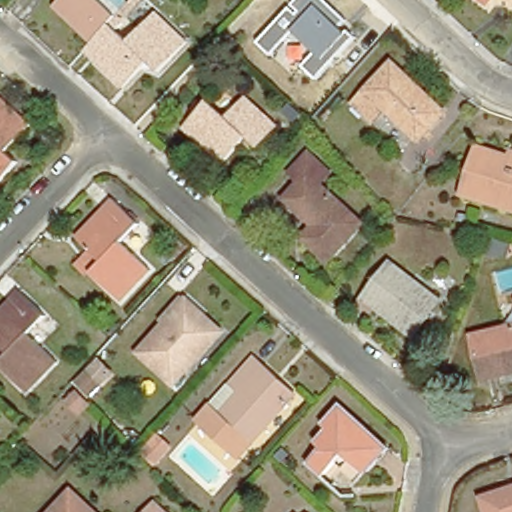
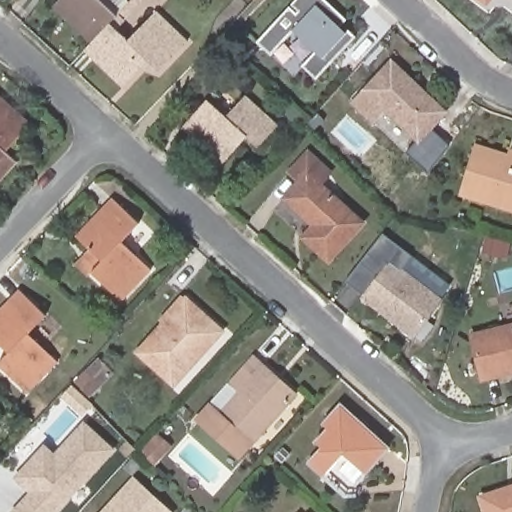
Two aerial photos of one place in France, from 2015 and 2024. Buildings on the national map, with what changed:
unchanged [(57,0),(102,0),(117,13),(110,21),(91,40),(53,4),(57,0)]
unchanged [(345,35),(349,31),(357,40),(319,79),(303,66),(313,51),(294,33),(272,55),(262,40),(290,8),(295,11),(298,9),(292,4),(296,0),(325,0),(347,20),(338,28),(345,35)]
unchanged [(487,0),(489,0),(488,1),(487,0)]
unchanged [(129,38),(155,10),(187,39),(160,69),(149,59),(123,85),(84,49),(91,40),(110,21),(129,38)]
unchanged [(392,61),(445,111),(420,137),(385,106),(373,118),(355,100),(392,61)]
unchanged [(213,94),(231,110),(251,89),(282,118),(263,140),(252,130),(228,157),(188,120),(213,94)]
unchanged [(6,144),(18,155),(0,175),(0,91),(30,118),(6,144)]
unchanged [(312,145),(336,166),(326,177),(369,216),(333,254),(308,231),(319,219),(290,191),(305,175),(294,164),(312,145)]
unchanged [(456,192),(470,145),(501,155),(502,150),(512,153),(512,210),(456,192)]
unchanged [(73,258),(88,242),(76,230),(111,191),(138,216),(121,235),(149,262),(120,293),(91,266),(86,270),(73,258)]
new [(383,234),(412,256),(402,270),(390,261),(364,294),(348,281),(383,234)]
unchanged [(183,247),(177,255),(168,247),(175,239),(183,247)]
unchanged [(364,294),(390,261),(402,270),(441,298),(414,333),(376,305),(372,310),(359,300),(364,294)]
unchanged [(28,332),(56,359),(26,391),(0,365),(0,359),(8,351),(0,344),(0,308),(18,289),(44,314),(28,332)]
unchanged [(220,329),(173,382),(136,350),(151,334),(163,321),(186,297),(220,329)]
unchanged [(483,377),(472,334),(512,325),(512,371),(483,377)]
unchanged [(253,355),(293,392),(236,456),(196,418),(253,355)]
unchanged [(86,370),(99,382),(91,391),(78,378),(86,370)]
unchanged [(74,393),(85,403),(76,412),(66,401),(74,393)]
unchanged [(350,402),(396,443),(375,467),(353,448),(333,471),(319,459),(332,445),(327,440),(338,426),(333,421),(350,402)]
new [(26,492),(14,477),(44,444),(55,452),(84,421),(115,450),(59,512),(10,512),(26,492)]
unchanged [(154,433),(168,447),(151,465),(138,451),(154,433)]
unchanged [(283,448),(289,453),(280,462),(274,456),(283,448)]
new [(134,478),(173,512),(102,512),(134,478)]
demolished [(71,482),(102,512),(42,512),(71,482)]
unchanged [(512,483),(512,512),(491,512),(484,492),(512,483)]
demolished [(145,509),(147,512),(142,512),(145,509)]

